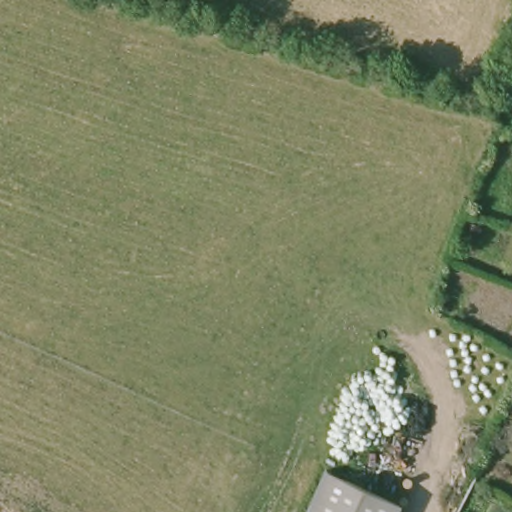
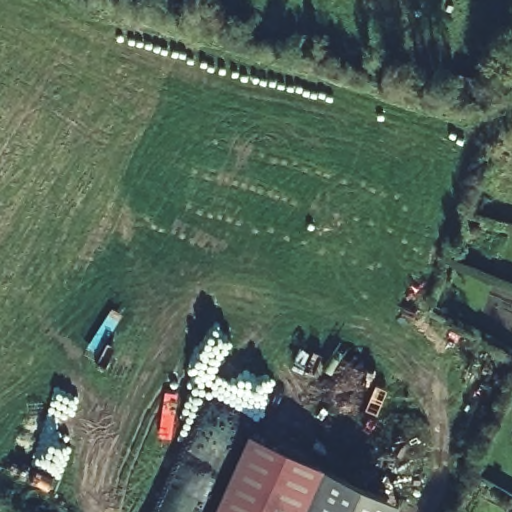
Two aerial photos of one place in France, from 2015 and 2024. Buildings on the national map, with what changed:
new [(217,512),(252,435),(325,470),(306,512),(217,512)]
unchanged [(357,485),(395,503),(391,512),(306,512),(325,470),(357,485)]

